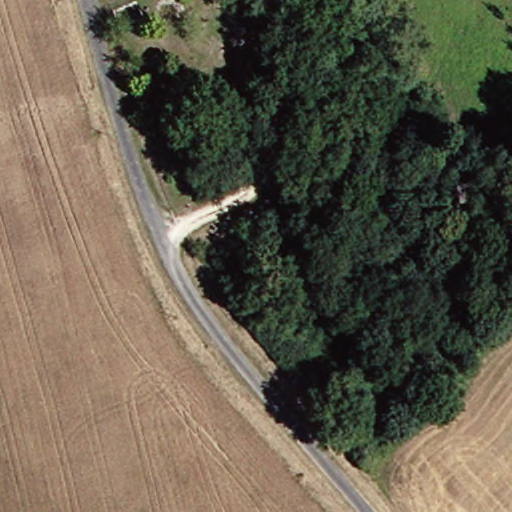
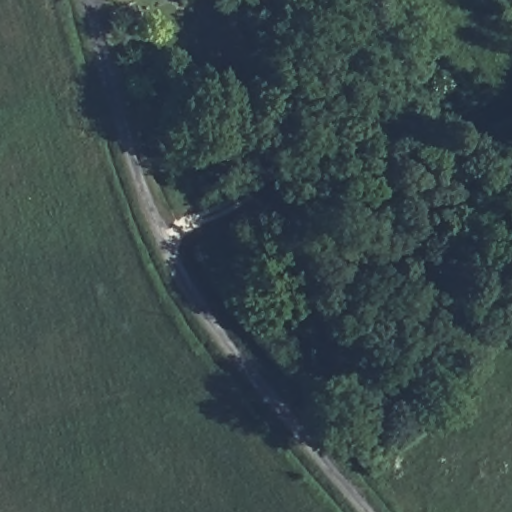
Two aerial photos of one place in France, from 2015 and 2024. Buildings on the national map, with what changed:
[]

